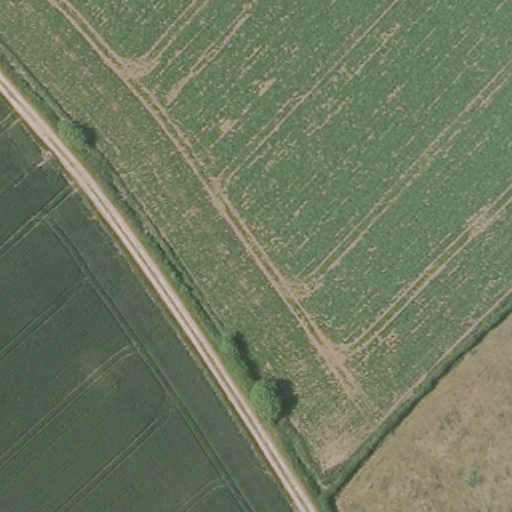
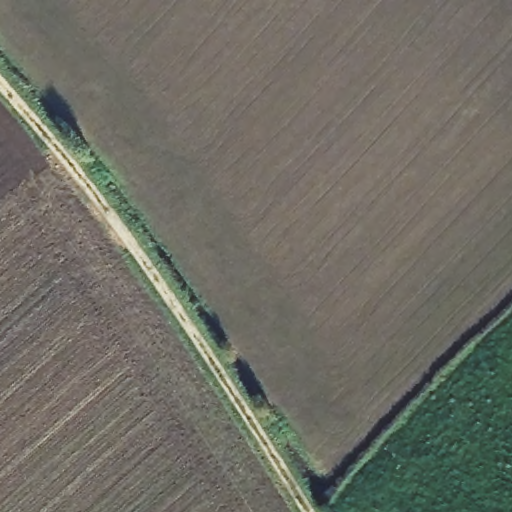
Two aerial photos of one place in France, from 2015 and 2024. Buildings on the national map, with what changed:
[]

